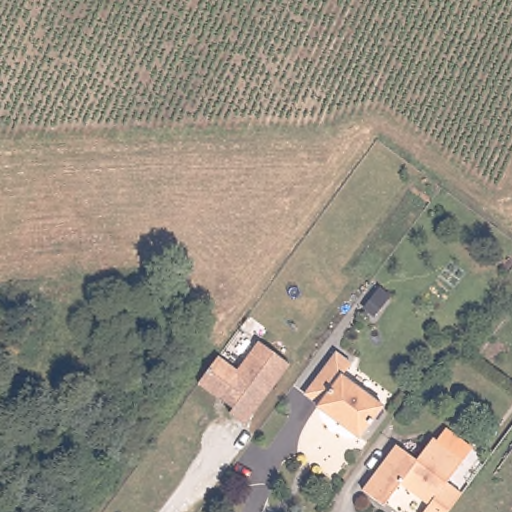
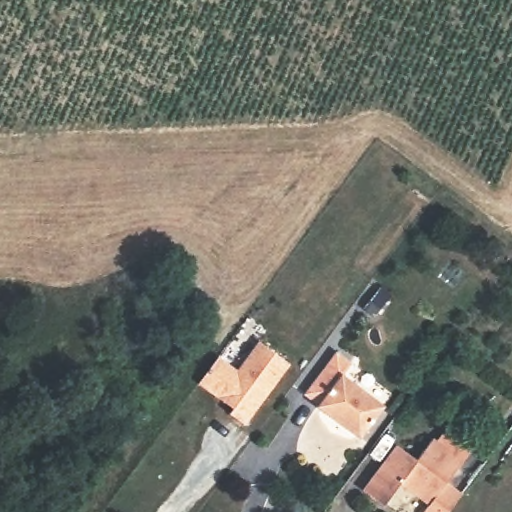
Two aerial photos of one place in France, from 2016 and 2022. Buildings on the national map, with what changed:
unchanged [(220,359),(239,374),(261,345),(291,368),(246,429),(231,416),(234,412),(200,386),(220,359)]
unchanged [(340,351),(356,363),(346,376),(388,407),(364,439),(321,409),(322,405),(308,394),(340,351)]
unchanged [(463,496),(451,512),(427,512),(431,506),(406,488),(409,484),(405,481),(387,506),(366,491),(398,448),(418,463),(434,442),(441,431),(472,453),(464,464),(449,485),(463,496)]

